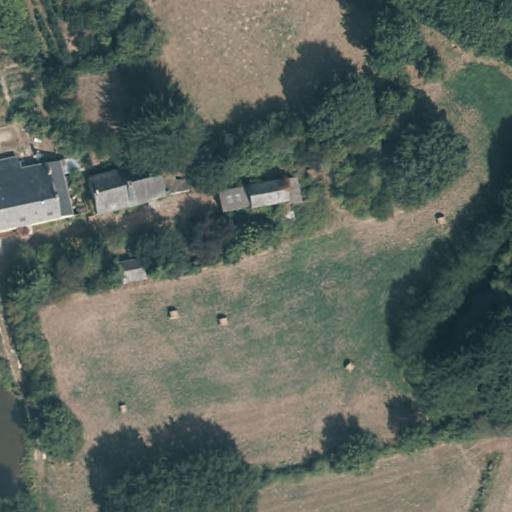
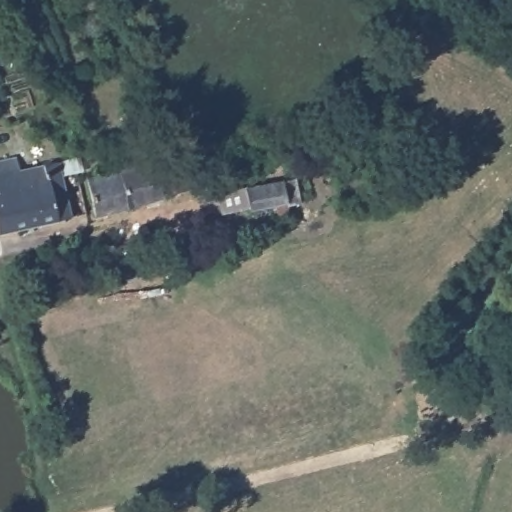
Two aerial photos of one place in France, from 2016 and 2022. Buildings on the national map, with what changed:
unchanged [(0,228),(0,162),(20,157),(23,170),(62,162),(85,157),(88,171),(80,172),(65,175),(75,217),(1,233),(0,228)]
unchanged [(194,190),(100,216),(91,179),(172,157),(179,180),(192,180),(194,190)]
unchanged [(220,212),(215,195),(295,180),(299,204),(286,205),(286,203),(270,207),(220,212)]

